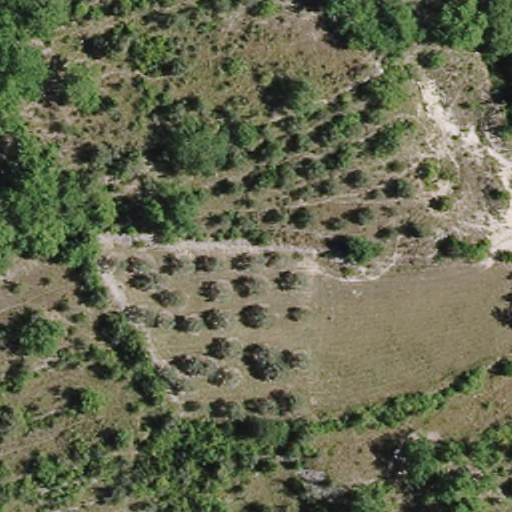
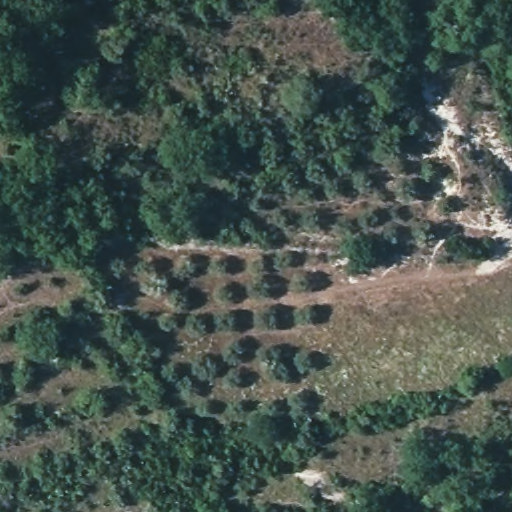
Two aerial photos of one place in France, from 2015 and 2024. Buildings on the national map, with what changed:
[]

